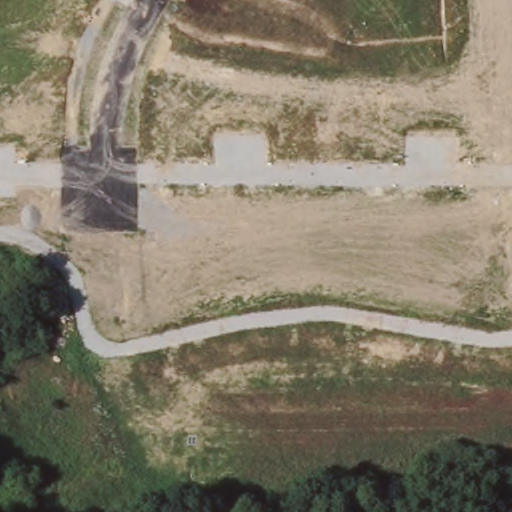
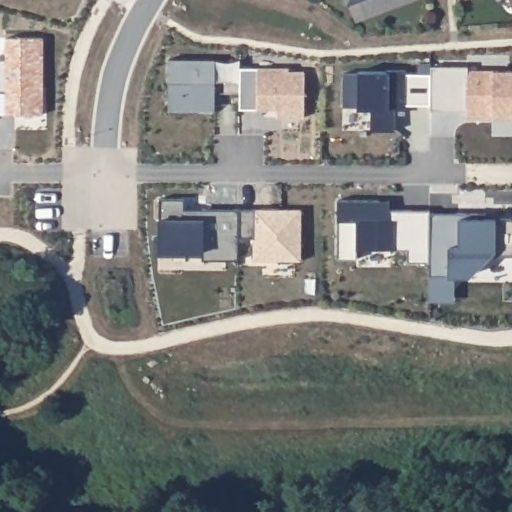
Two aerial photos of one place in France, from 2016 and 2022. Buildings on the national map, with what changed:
new [(348,4),(347,0),(358,0),(348,4)]
new [(170,59),(216,60),(216,105),(216,110),(169,110),(169,104),(170,59)]
new [(431,75),(432,66),(468,67),(468,70),(512,71),(512,117),(467,116),(467,111),(431,110),(431,105),(431,75)]
new [(241,68),(290,69),(289,72),(305,72),(305,117),(277,117),(277,110),(240,110),(241,68)]
new [(344,74),(359,74),(359,71),(387,72),(387,70),(407,71),(407,75),(431,75),(431,105),(406,105),(406,110),(396,110),(396,131),(372,131),(372,110),(358,110),(358,107),(343,107),(344,74)]
new [(240,238),(239,260),(204,260),(204,252),(160,251),(160,220),(159,197),(185,197),(185,208),(240,210),(240,238)]
new [(380,200),(390,200),(390,210),(430,210),(430,212),(430,261),(407,261),(408,249),(357,249),(357,258),(337,258),(338,200),(380,200)]
new [(240,210),(302,210),(301,260),(255,260),(255,238),(240,238),(240,210)]
new [(430,212),(487,212),(487,217),(512,217),(512,262),(485,262),(464,275),(451,275),(451,301),(430,301),(430,281),(430,261),(430,212)]

